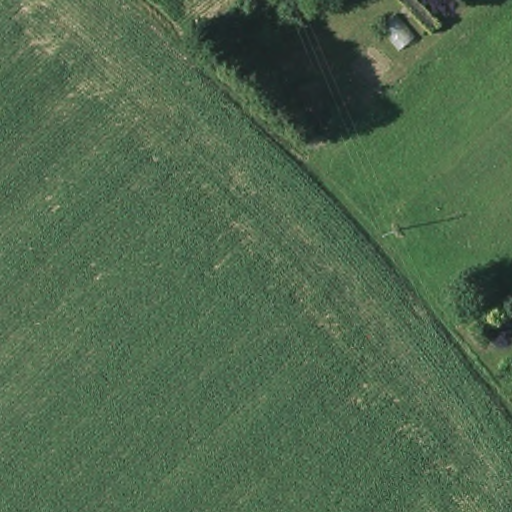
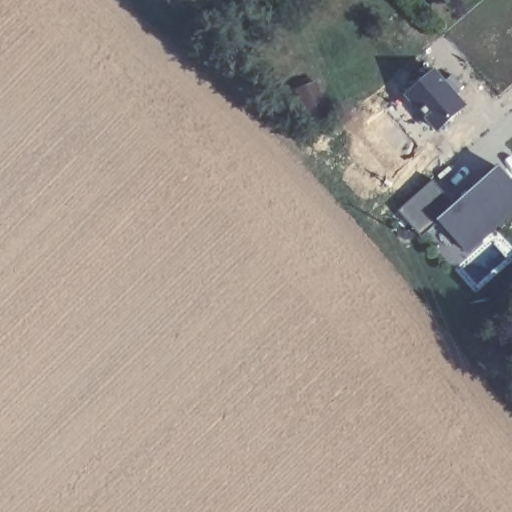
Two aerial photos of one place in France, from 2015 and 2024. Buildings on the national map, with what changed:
new [(467,106),(440,130),(405,95),(435,68),(467,106)]
new [(327,109),(306,118),(295,92),(317,82),(327,109)]
new [(512,180),(512,218),(468,255),(437,221),(452,205),(499,166),(512,180)]
new [(452,205),(437,221),(419,235),(396,209),(432,179),(452,205)]

